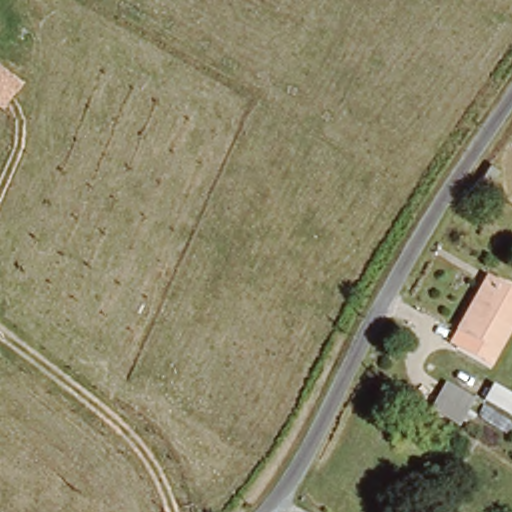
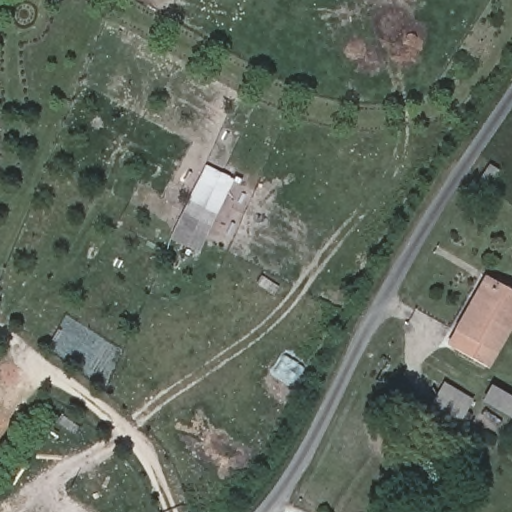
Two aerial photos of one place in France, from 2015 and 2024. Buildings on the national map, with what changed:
new [(206,164),(233,179),(198,252),(170,237),(206,164)]
unchanged [(489,370),(459,352),(465,340),(456,335),(484,286),(488,280),(505,288),(512,293),(512,330),(489,370)]

